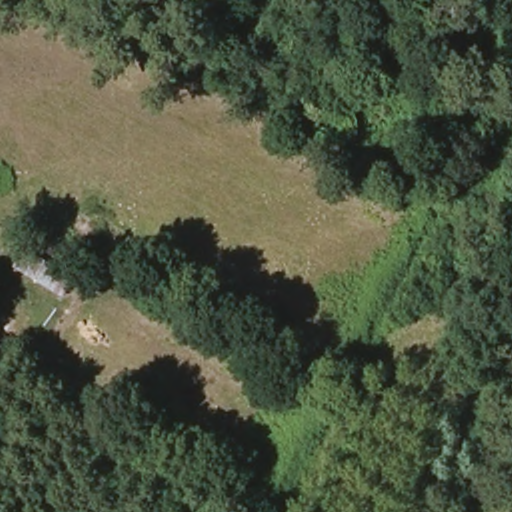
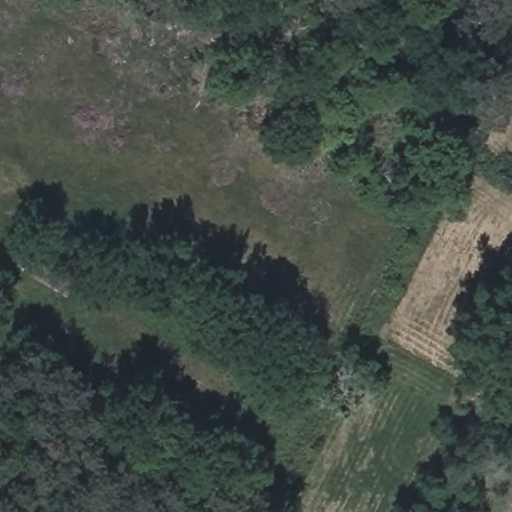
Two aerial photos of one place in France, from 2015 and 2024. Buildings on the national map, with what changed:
unchanged [(46,255),(76,273),(61,297),(33,276),(46,255)]

